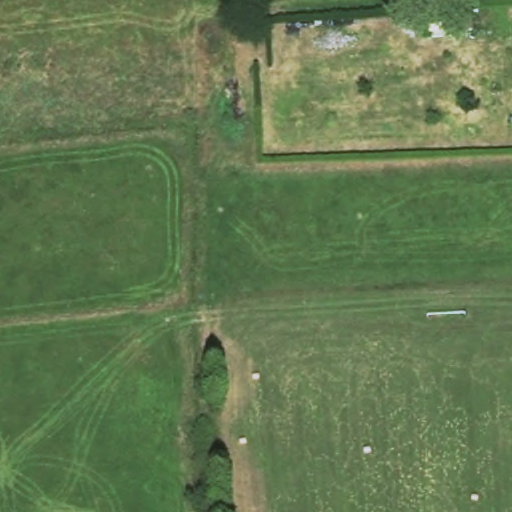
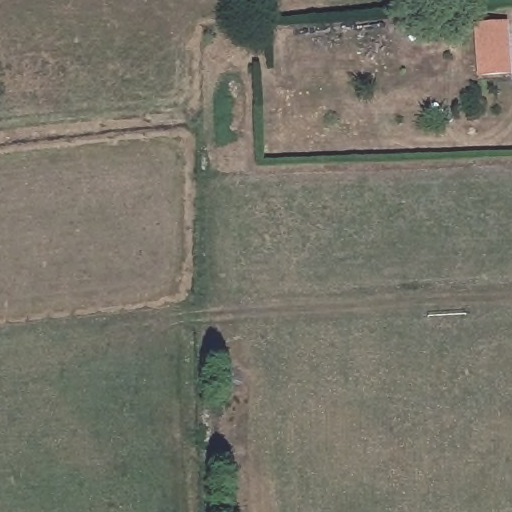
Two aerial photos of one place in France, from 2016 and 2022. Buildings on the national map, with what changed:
new [(511,75),(477,77),(474,25),(507,21),(511,75)]

